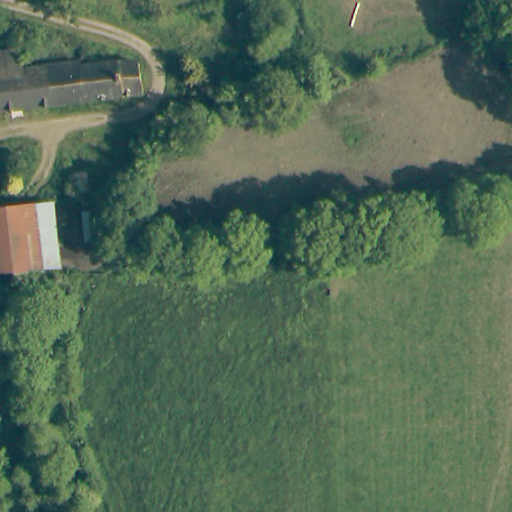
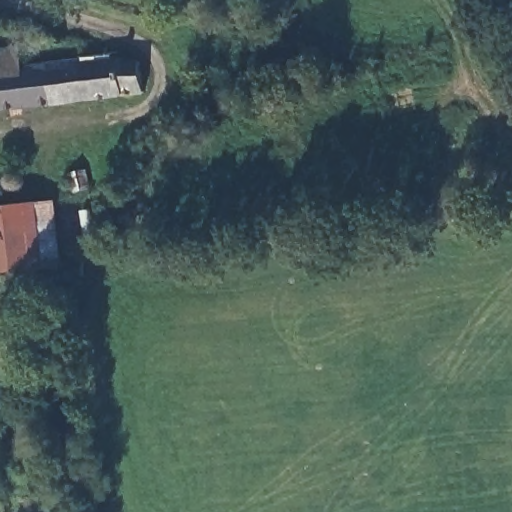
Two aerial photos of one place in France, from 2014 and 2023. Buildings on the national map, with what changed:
unchanged [(19,69),(55,64),(80,61),(81,70),(143,65),(147,94),(65,101),(0,110),(0,56),(17,54),(19,69)]
unchanged [(0,274),(0,206),(36,201),(57,200),(64,267),(45,271),(0,274)]

